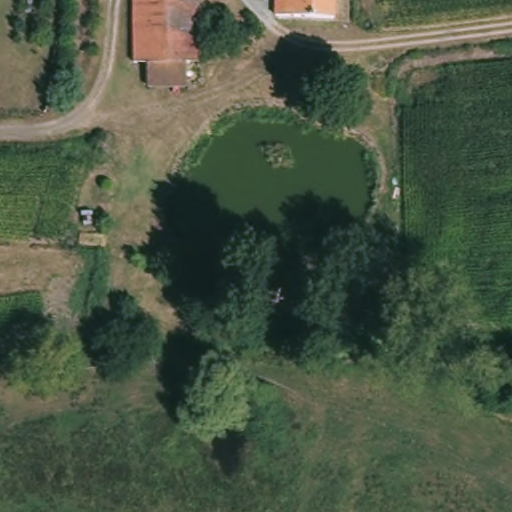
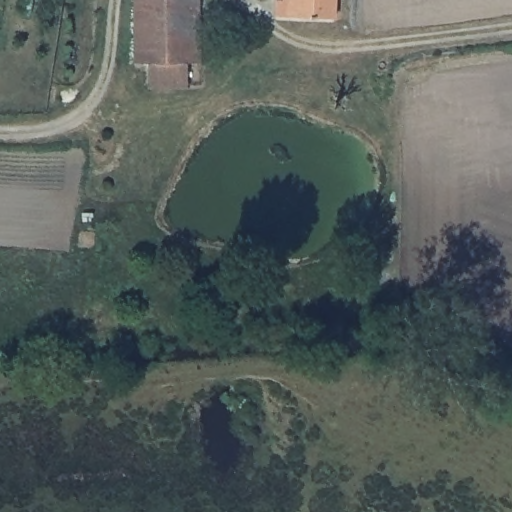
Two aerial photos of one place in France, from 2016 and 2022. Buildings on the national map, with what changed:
unchanged [(192,62),(126,63),(124,0),(190,0),(192,62)]
unchanged [(335,19),(277,16),(277,0),(335,0),(335,19)]

